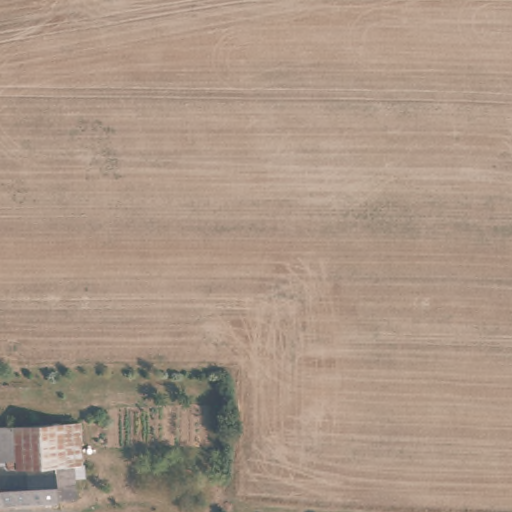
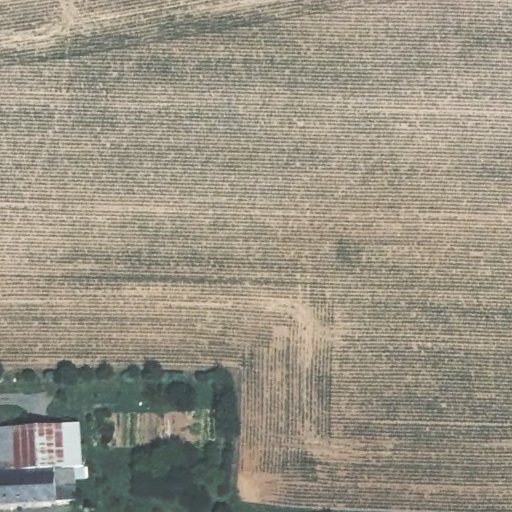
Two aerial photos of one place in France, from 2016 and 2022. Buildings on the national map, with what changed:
unchanged [(85,483),(74,484),(76,506),(0,511),(0,427),(80,421),(85,483)]

